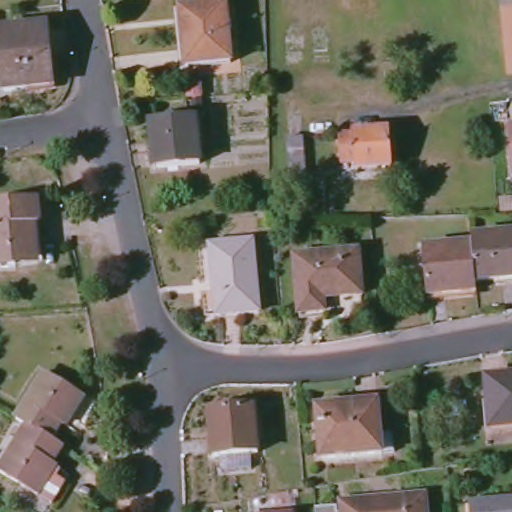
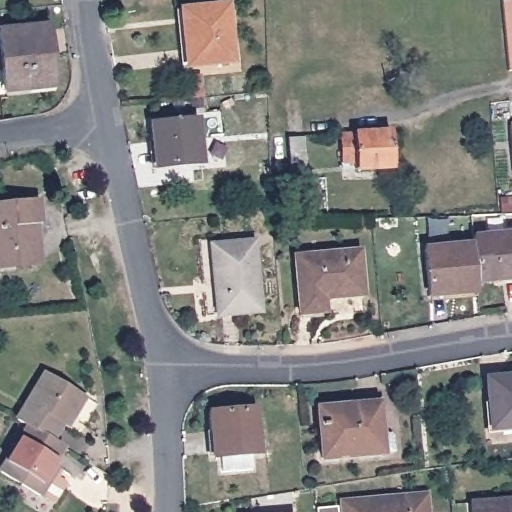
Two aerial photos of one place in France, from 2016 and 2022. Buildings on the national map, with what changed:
unchanged [(512,0),(512,71),(505,71),(498,2),(498,0),(512,0)]
unchanged [(182,8),(226,4),(231,61),(188,65),(182,8)]
unchanged [(0,34),(0,30),(45,25),(52,86),(7,91),(0,34)]
unchanged [(150,123),(197,119),(201,161),(155,167),(150,123)]
unchanged [(512,125),(512,174),(510,174),(506,125),(512,125)]
unchanged [(352,134),(389,131),(391,168),(354,170),(353,162),(340,163),(337,135),(352,134)]
unchanged [(301,137),(305,195),(291,196),(286,138),(301,137)]
unchanged [(38,201),(40,222),(35,223),(40,263),(0,268),(0,206),(38,201)]
unchanged [(471,237),(512,232),(512,278),(475,282),(472,243),(471,237)]
unchanged [(219,283),(215,283),(212,245),(253,241),(260,310),(221,314),(219,283)]
unchanged [(475,282),(476,291),(431,296),(426,247),(472,243),(475,282)]
unchanged [(295,255),(359,250),(362,294),(325,298),(325,310),(300,313),(295,255)]
unchanged [(27,427),(16,421),(46,372),(84,395),(68,421),(64,418),(50,440),(27,427)]
unchanged [(486,377),(512,375),(512,427),(491,428),(486,377)]
unchanged [(218,465),(216,449),(210,450),(205,406),(250,403),(253,446),(249,447),(250,463),(218,465)]
unchanged [(390,451),(378,452),(318,459),(313,408),(373,403),(376,433),(385,432),(389,437),(390,451)]
unchanged [(56,478),(65,483),(52,506),(37,497),(0,475),(0,474),(27,427),(50,440),(61,447),(50,466),(55,468),(60,471),(56,478)]
unchanged [(343,502),(425,495),(427,512),(344,512),(343,502)]
unchanged [(512,499),(512,512),(473,512),(472,502),(512,499)]
unchanged [(316,507),(336,506),(337,512),(316,512),(316,507)]

